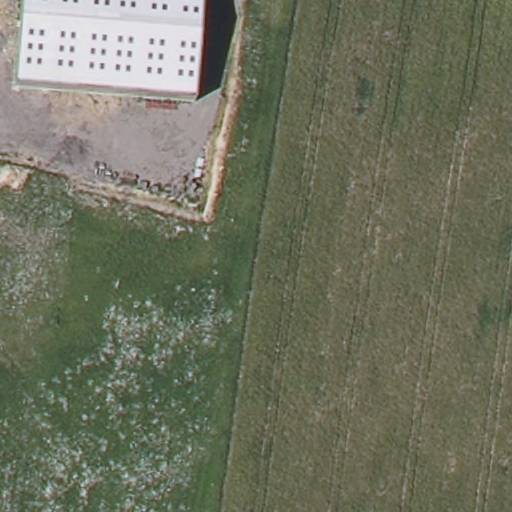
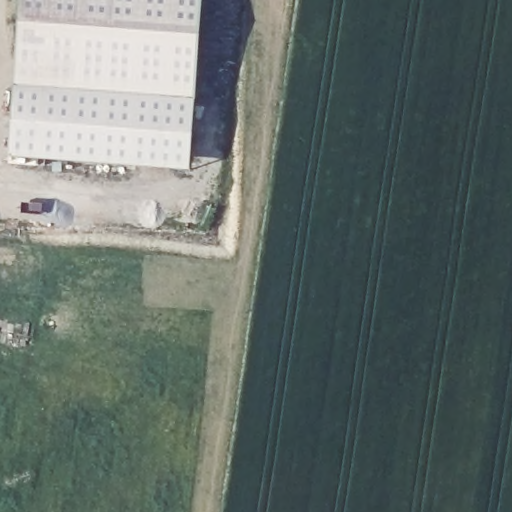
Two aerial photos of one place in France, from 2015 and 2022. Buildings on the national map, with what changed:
unchanged [(201,0),(195,101),(15,88),(23,0),(201,0)]
new [(195,101),(189,171),(10,159),(15,88),(195,101)]

